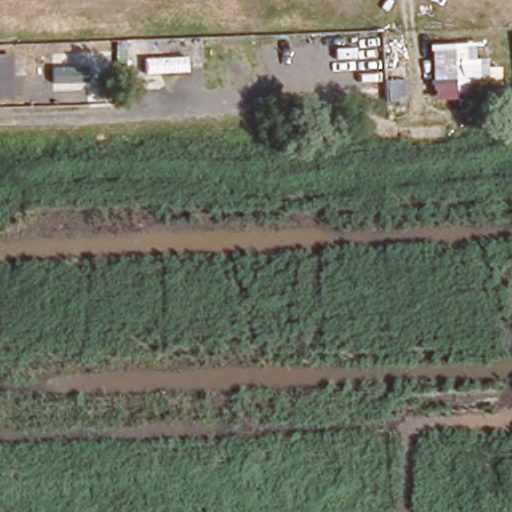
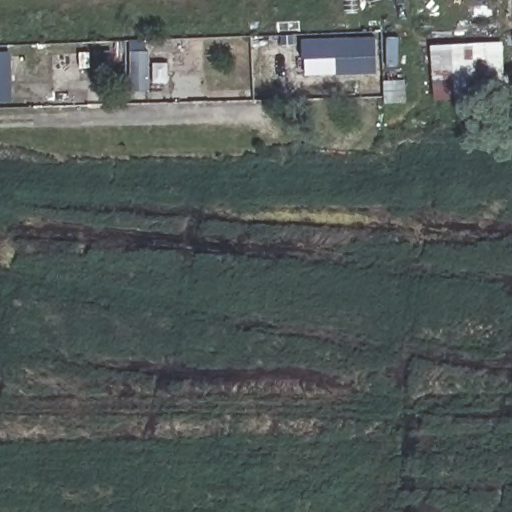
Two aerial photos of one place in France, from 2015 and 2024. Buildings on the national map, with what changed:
new [(306,59),(303,59),(302,39),(375,37),(377,74),(307,75),(306,59)]
unchanged [(475,45),(475,60),(487,60),(490,101),(435,104),(431,47),(475,45)]
unchanged [(165,49),(166,59),(185,59),(186,74),(126,76),(126,50),(165,49)]
unchanged [(15,88),(0,89),(0,56),(13,55),(15,88)]
new [(385,78),(406,78),(406,103),(385,103),(385,78)]

